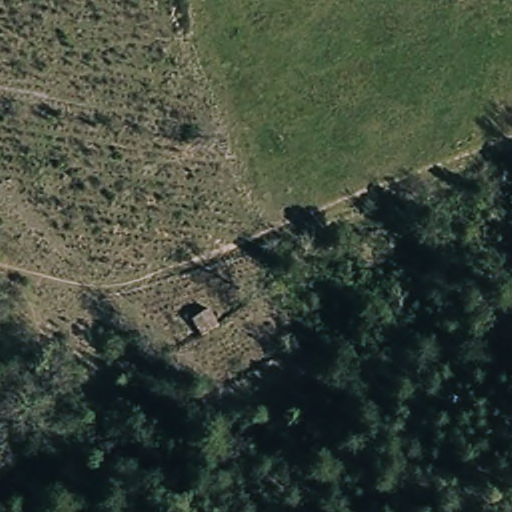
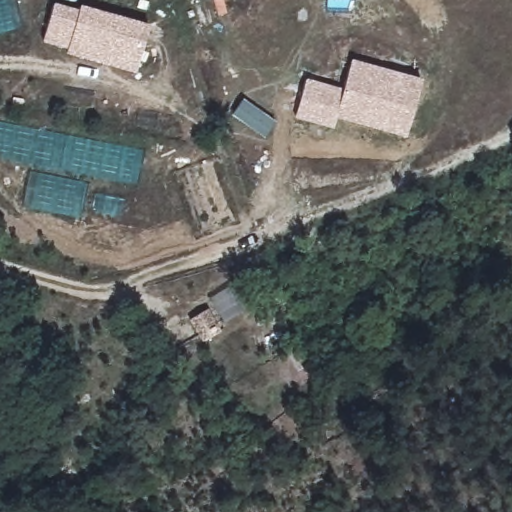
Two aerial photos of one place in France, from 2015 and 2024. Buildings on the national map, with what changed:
new [(0,31),(0,0),(16,0),(23,25),(0,31)]
new [(78,10),(80,5),(151,25),(136,75),(66,54),(68,49),(42,42),(54,2),(78,10)]
new [(423,79),(407,136),(336,119),(334,128),(295,116),(305,79),(343,87),(351,59),(423,79)]
new [(138,184),(0,158),(0,122),(144,150),(138,184)]
unchanged [(243,302),(226,317),(213,305),(229,289),(243,302)]

